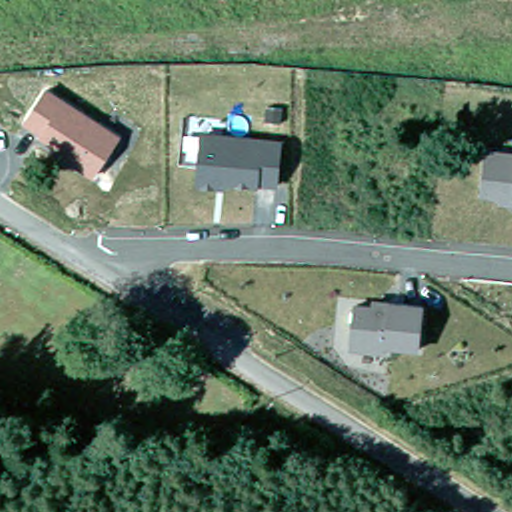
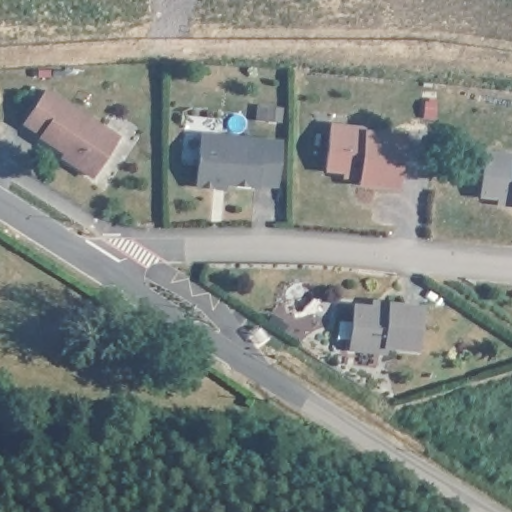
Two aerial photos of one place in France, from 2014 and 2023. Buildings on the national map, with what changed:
unchanged [(121,135),(93,177),(70,162),(75,154),(25,120),(45,85),(121,135)]
new [(327,171),(331,125),(364,129),(404,132),(398,189),(361,184),(361,180),(344,178),(344,173),(327,171)]
unchanged [(283,137),(280,187),(260,185),(259,190),(199,186),(203,132),(283,137)]
unchanged [(512,152),(512,207),(494,205),(494,199),(479,197),(485,150),(512,152)]
unchanged [(371,303),(372,298),(424,302),(422,353),(385,349),(385,355),(350,350),(353,302),(371,303)]

